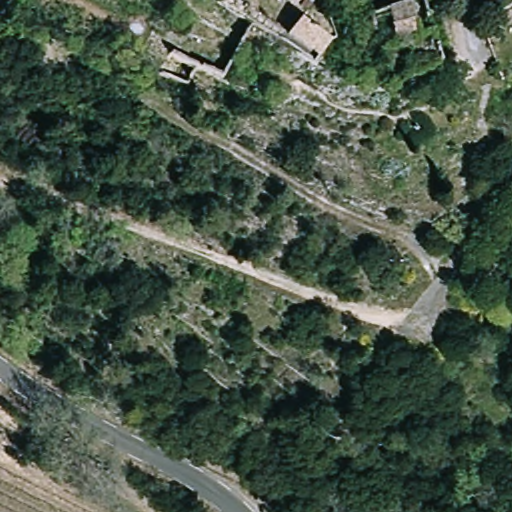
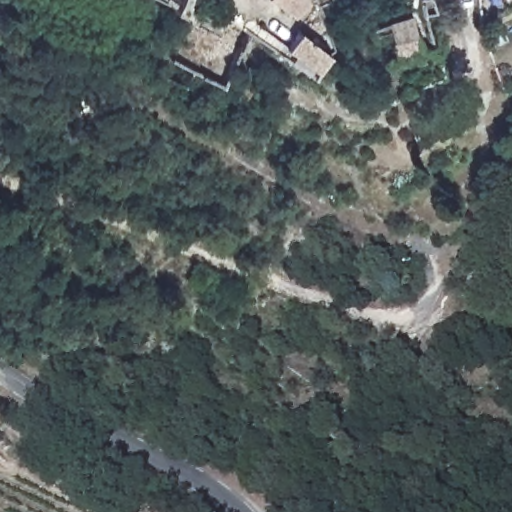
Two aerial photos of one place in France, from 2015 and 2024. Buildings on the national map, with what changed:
unchanged [(283,0),(303,0),(294,5),(283,0)]
unchanged [(432,0),(436,0),(433,1),(432,0)]
unchanged [(420,6),(429,39),(400,47),(393,12),(420,6)]
unchanged [(311,19),(336,49),(325,72),(288,37),(311,19)]

